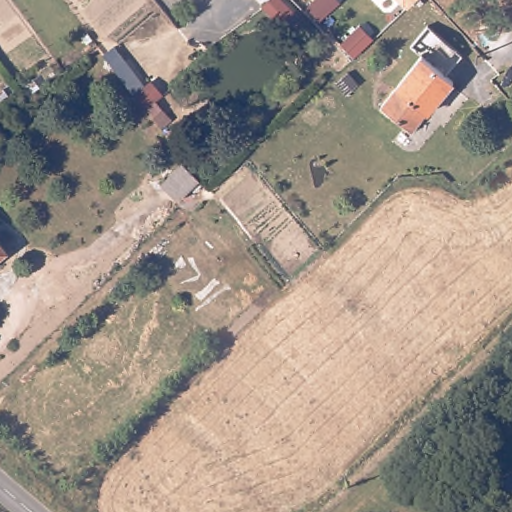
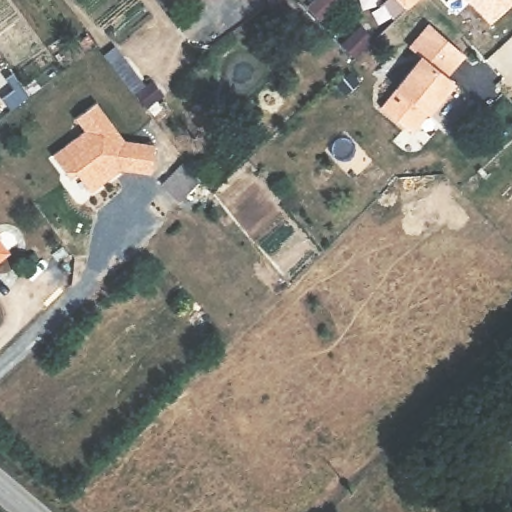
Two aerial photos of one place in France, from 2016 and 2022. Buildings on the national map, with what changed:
unchanged [(412,6),(405,0),(418,0),(412,6)]
unchanged [(410,45),(430,22),(467,56),(450,77),(424,57),(410,45)]
unchanged [(115,46),(145,84),(152,80),(164,95),(158,102),(176,122),(169,127),(146,109),(104,55),(115,46)]
unchanged [(419,133),(383,107),(424,57),(455,82),(419,133)]
new [(65,172),(53,156),(85,132),(75,119),(96,103),(125,141),(156,145),(153,173),(121,170),(91,193),(78,175),(71,180),(65,172)]
unchanged [(164,176),(182,161),(200,185),(184,201),(164,176)]
unchanged [(10,252),(0,259),(0,238),(10,252)]

